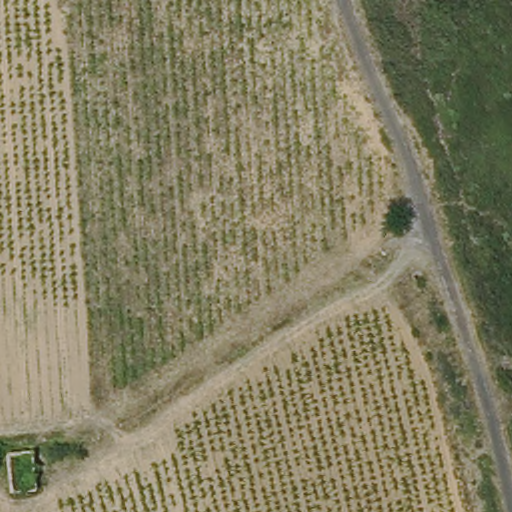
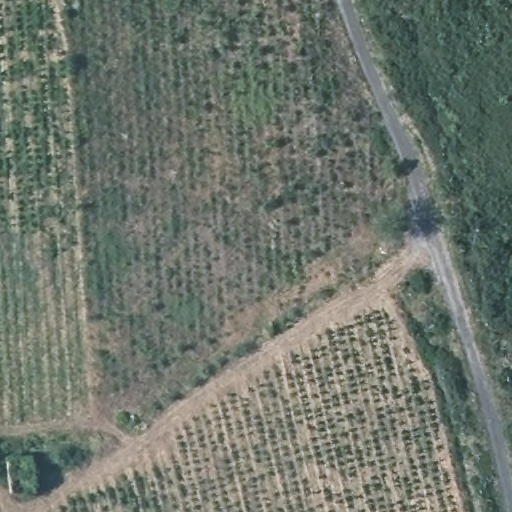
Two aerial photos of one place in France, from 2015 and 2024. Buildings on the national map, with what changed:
[]

